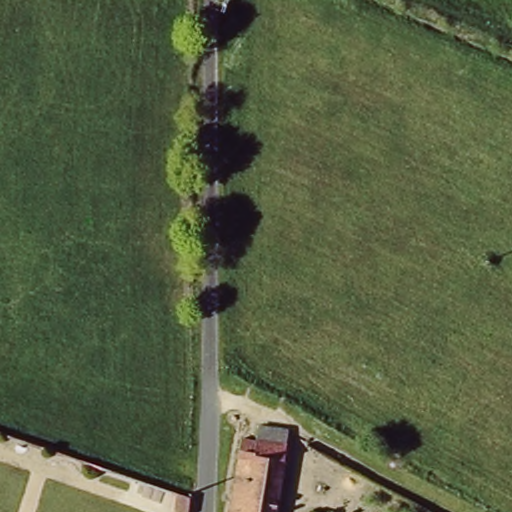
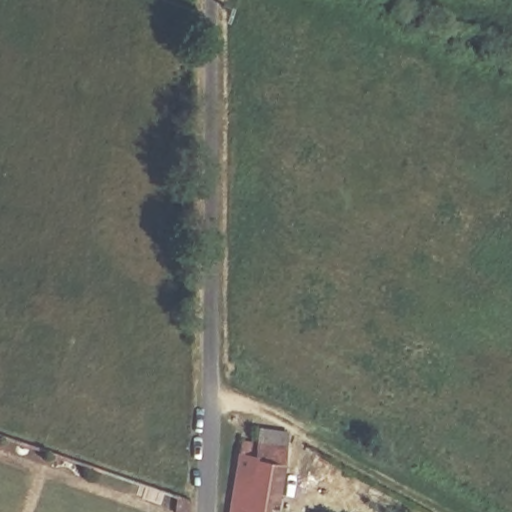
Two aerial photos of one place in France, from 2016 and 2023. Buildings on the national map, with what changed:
unchanged [(276,512),(230,512),(239,453),(241,442),(256,444),(258,431),(288,436),(286,449),(284,464),(276,512)]

